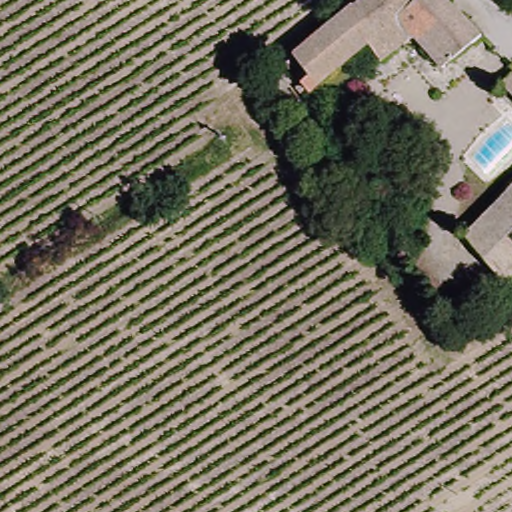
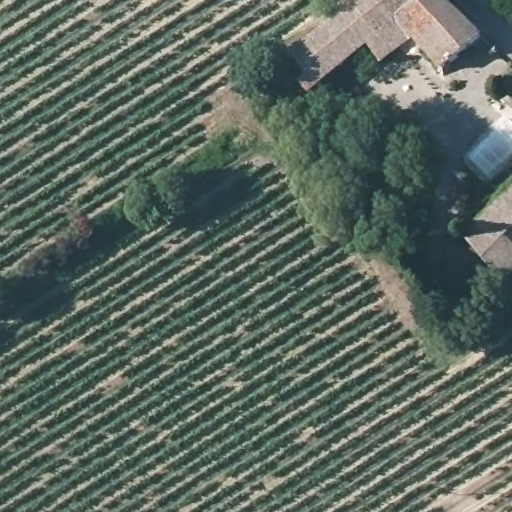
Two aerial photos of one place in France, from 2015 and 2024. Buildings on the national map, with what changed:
unchanged [(485,30),(449,65),(420,37),(390,61),(373,42),(315,91),(308,85),(315,79),(297,57),(363,0),(452,0),(485,30)]
unchanged [(510,84),(512,82),(512,85),(510,84)]
unchanged [(509,283),(471,242),(512,199),(512,280),(509,283)]
unchanged [(451,337),(443,327),(452,321),(459,331),(451,337)]

